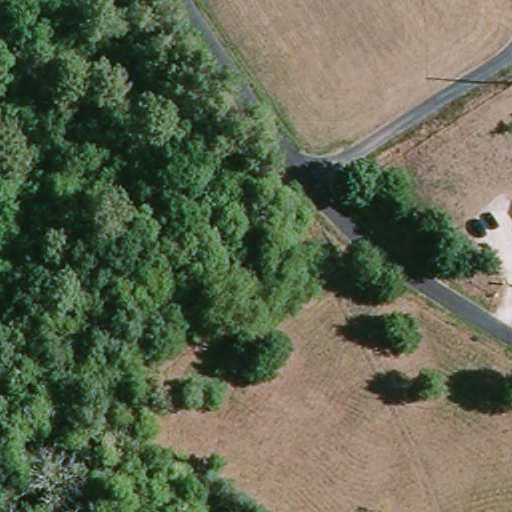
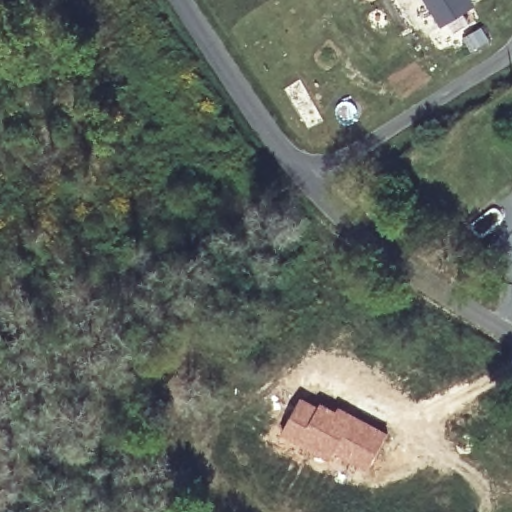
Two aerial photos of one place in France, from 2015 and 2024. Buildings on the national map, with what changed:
new [(427,0),(471,0),(474,5),(442,25),(427,0)]
new [(301,395),(319,404),(321,400),(336,408),(339,404),(389,434),(364,475),(344,464),(342,467),(278,437),(301,395)]

